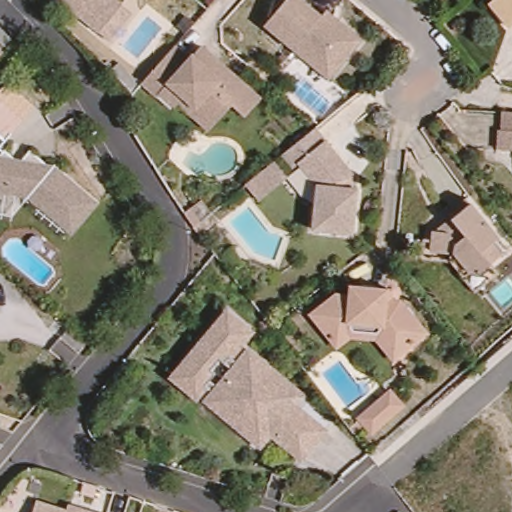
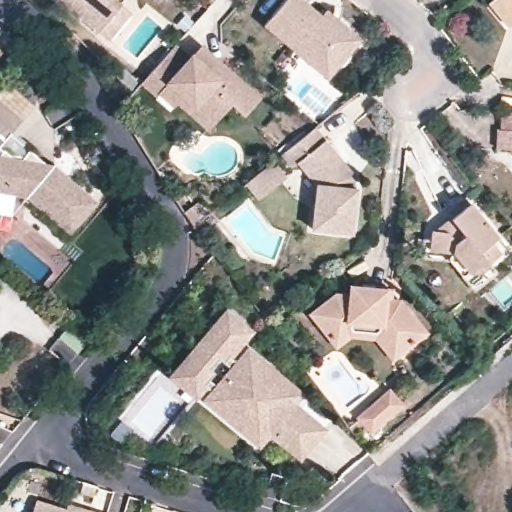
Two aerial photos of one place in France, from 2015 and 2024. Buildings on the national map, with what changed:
unchanged [(103,37),(94,29),(59,0),(116,0),(117,2),(127,10),(103,37)]
unchanged [(287,52),(257,27),(279,0),(294,0),(315,17),(319,11),(332,21),(354,39),(327,73),(321,80),(287,52)]
unchanged [(486,9),(496,0),(512,0),(512,29),(509,32),(486,9)]
unchanged [(2,17),(16,27),(0,47),(0,20),(2,17)]
unchanged [(181,110),(176,114),(161,100),(160,103),(139,84),(172,48),(187,62),(190,59),(200,48),(218,65),(260,103),(243,121),(231,109),(214,128),(208,135),(181,110)]
unchanged [(1,72),(0,71),(0,54),(8,61),(1,72)]
unchanged [(8,86),(34,106),(0,146),(0,95),(8,86)]
unchanged [(494,135),(498,136),(498,122),(512,123),(512,156),(492,154),(494,135)]
unchanged [(358,224),(356,244),(316,239),(319,214),(321,195),(306,177),(300,182),(287,167),(320,141),(358,187),(358,199),(361,200),(358,224)]
unchanged [(0,159),(0,147),(15,159),(21,160),(31,149),(50,169),(17,162),(0,159)]
unchanged [(58,170),(99,204),(76,230),(35,196),(0,189),(0,158),(58,170)]
unchanged [(293,189),(263,212),(251,196),(280,172),(293,189)]
unchanged [(15,192),(11,217),(0,215),(0,189),(15,192)]
unchanged [(494,245),(503,256),(477,277),(457,254),(431,251),(433,231),(440,231),(451,221),(448,216),(468,200),(497,236),(500,240),(494,245)]
unchanged [(211,224),(203,230),(197,222),(206,216),(211,224)]
unchanged [(347,337),(332,351),(326,343),(315,328),(305,317),(310,312),(335,290),(348,291),(348,286),(379,286),(388,285),(397,297),(425,329),(400,350),(391,357),(375,335),(347,337)]
unchanged [(230,355),(239,362),(250,350),(263,361),(255,371),(294,403),(263,441),(245,426),(253,415),(237,401),(232,407),(205,385),(197,395),(175,377),(228,312),(251,331),(230,355)]
unchanged [(355,418),(388,390),(406,411),(372,440),(355,418)]
unchanged [(323,428),(305,452),(278,429),(297,407),(323,428)]
unchanged [(67,512),(35,512),(37,503),(67,512)]

